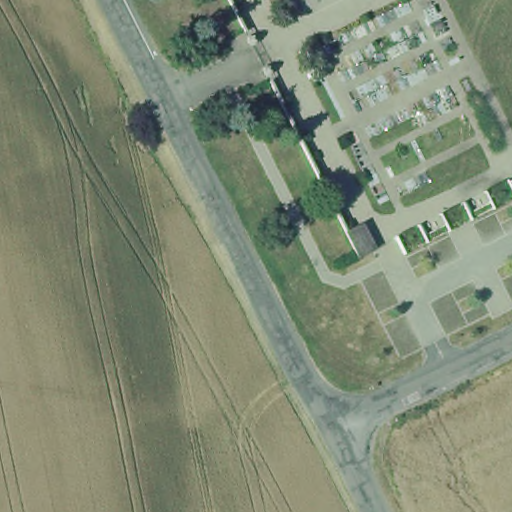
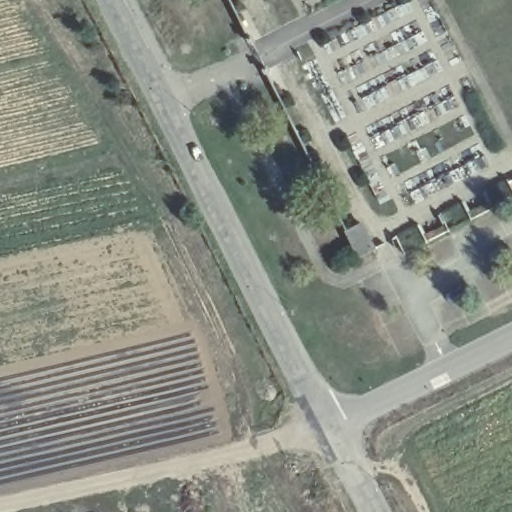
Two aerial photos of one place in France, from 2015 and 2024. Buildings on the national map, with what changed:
unchanged [(361,225),(375,249),(358,257),(345,232),(361,225)]

